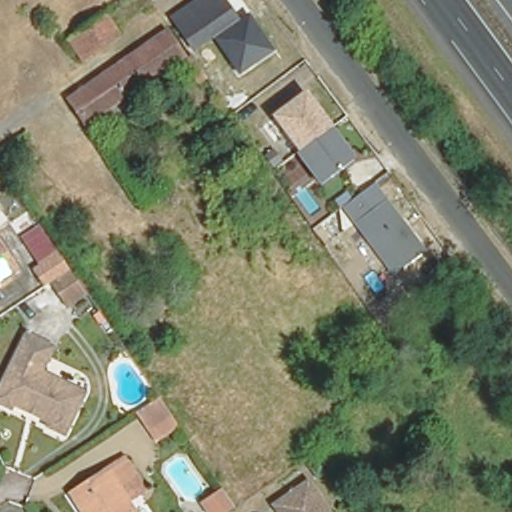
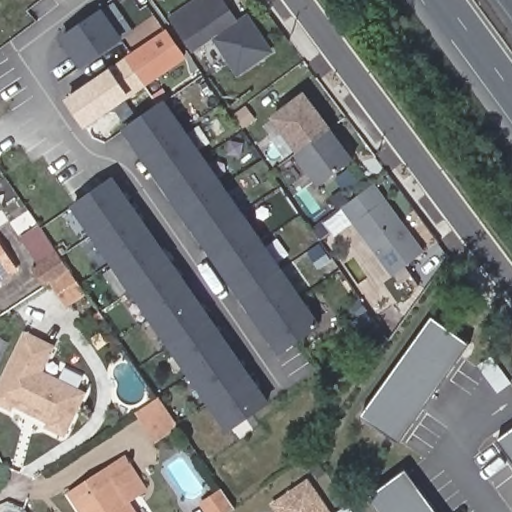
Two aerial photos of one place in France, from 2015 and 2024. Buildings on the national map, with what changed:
demolished [(224,18),(181,48),(159,14),(179,0),(212,0),(224,18)]
new [(194,54),(170,18),(197,0),(226,0),(240,21),(213,40),(194,54)]
demolished [(266,21),(256,28),(237,0),(252,0),(266,21)]
demolished [(129,30),(75,72),(59,46),(111,6),(129,30)]
new [(100,9),(120,37),(81,63),(62,35),(100,9)]
new [(275,52),(240,77),(213,40),(240,21),(249,14),(275,52)]
unchanged [(79,128),(60,105),(156,30),(175,55),(79,128)]
unchanged [(188,63),(188,64),(190,66),(182,72),(175,61),(182,55),(188,63)]
unchanged [(185,77),(193,71),(197,77),(189,83),(185,77)]
unchanged [(360,164),(321,192),(270,117),(308,90),(360,164)]
new [(279,349),(124,125),(162,99),(317,323),(279,349)]
new [(230,429),(73,206),(111,180),(267,402),(230,429)]
unchanged [(428,250),(395,277),(355,225),(390,201),(428,250)]
unchanged [(65,301),(50,279),(46,281),(16,242),(42,223),(70,265),(68,267),(84,288),(65,301)]
unchanged [(0,281),(0,249),(15,271),(0,281)]
new [(470,344),(400,444),(361,416),(432,317),(470,344)]
unchanged [(7,405),(0,401),(0,379),(23,330),(51,345),(39,367),(83,389),(62,432),(43,423),(45,418),(9,402),(7,405)]
unchanged [(157,395),(166,407),(145,421),(136,409),(157,395)]
new [(512,428),(512,462),(496,441),(512,428)]
unchanged [(123,461),(126,465),(147,499),(129,511),(129,512),(77,512),(72,505),(67,497),(123,461)]
new [(406,469),(438,512),(379,512),(368,497),(406,469)]
unchanged [(303,484),(322,512),(272,512),(269,508),(303,484)]

